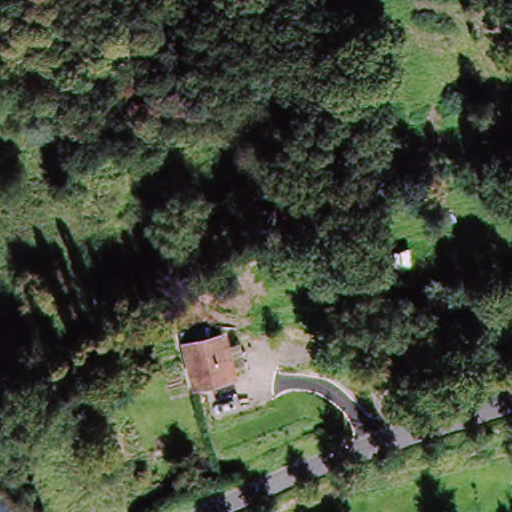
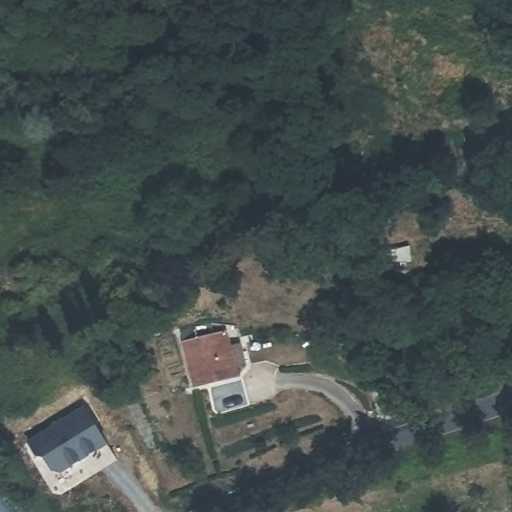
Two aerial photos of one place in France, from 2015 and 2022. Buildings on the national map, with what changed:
unchanged [(191,387),(181,341),(225,331),(235,377),(191,387)]
unchanged [(483,355),(510,348),(512,359),(512,374),(489,379),(483,355)]
unchanged [(354,418),(350,411),(341,393),(365,381),(375,399),(378,407),(354,418)]
new [(60,473),(50,470),(43,458),(35,455),(27,441),(84,407),(106,444),(60,473)]
demolished [(9,512),(0,512),(0,494),(14,487),(15,488),(23,505),(9,512)]
new [(7,496),(15,512),(0,512),(0,499),(7,496)]

